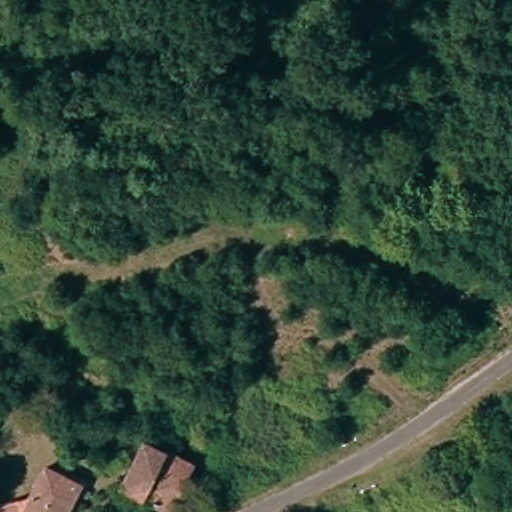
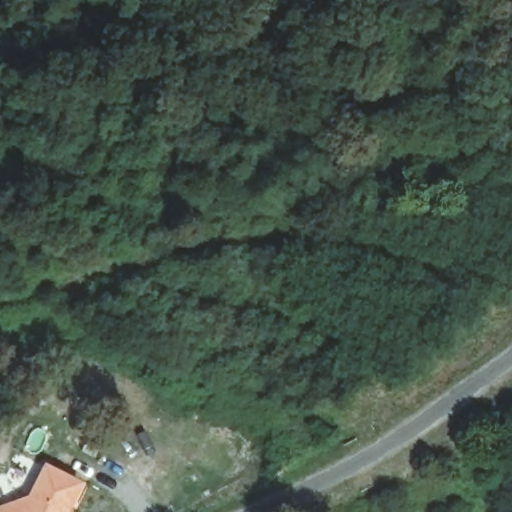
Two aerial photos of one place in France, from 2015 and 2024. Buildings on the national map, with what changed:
demolished [(146,440),(193,463),(170,509),(122,491),(146,440)]
unchanged [(81,485),(67,512),(25,512),(47,467),(81,485)]
unchanged [(13,506),(25,512),(0,512),(1,510),(13,506)]

